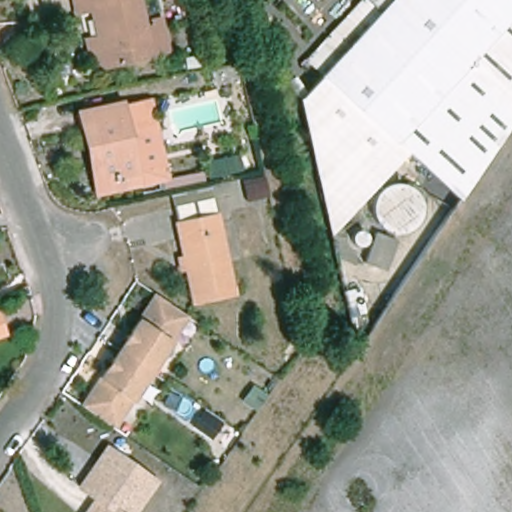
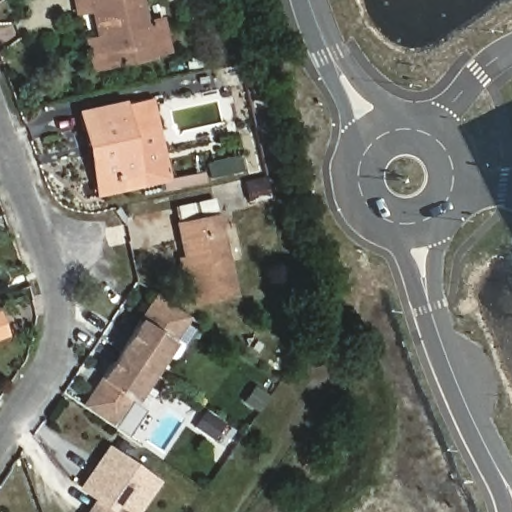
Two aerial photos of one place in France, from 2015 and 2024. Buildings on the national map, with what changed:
unchanged [(86,0),(134,0),(139,23),(155,19),(162,50),(146,53),(147,56),(107,64),(100,66),(88,10),(86,0)]
demolished [(319,75),(321,73),(387,0),(512,0),(512,122),(460,199),(406,152),(319,75)]
demolished [(371,0),(387,0),(321,73),(371,0)]
demolished [(332,233),(296,99),(319,75),(406,152),(332,233)]
unchanged [(123,105),(152,98),(170,178),(141,183),(123,105)]
unchanged [(97,192),(87,148),(80,114),(123,105),(141,183),(122,187),(105,191),(97,192)]
unchanged [(271,195),(250,199),(247,184),(268,180),(271,195)]
demolished [(404,184),(415,192),(421,206),(403,231),(389,229),(376,221),(373,206),(376,197),(382,185),(390,182),(404,184)]
unchanged [(176,223),(172,193),(213,184),(221,213),(176,223)]
unchanged [(193,301),(187,271),(181,271),(177,256),(182,255),(176,223),(221,213),(239,293),(193,301)]
demolished [(366,259),(375,232),(396,240),(386,268),(366,259)]
unchanged [(353,333),(342,291),(361,286),(367,319),(353,333)]
unchanged [(188,317),(150,373),(120,352),(158,296),(188,317)]
unchanged [(7,335),(0,337),(0,315),(7,335)]
unchanged [(112,429),(82,408),(120,352),(150,373),(112,429)]
unchanged [(156,479),(133,512),(88,512),(99,497),(83,485),(110,447),(156,479)]

